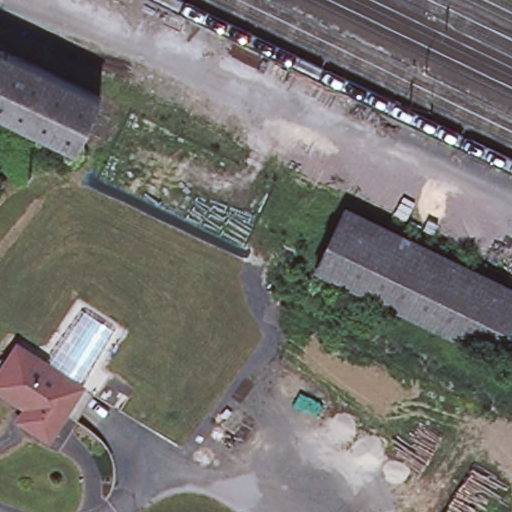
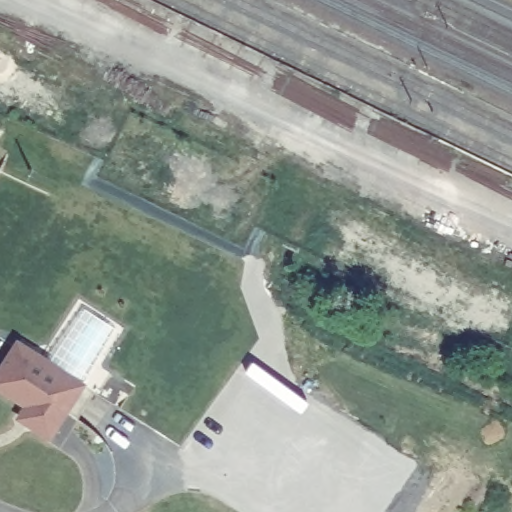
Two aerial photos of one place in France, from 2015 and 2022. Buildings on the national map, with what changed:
demolished [(79,151),(0,114),(0,53),(103,103),(79,151)]
demolished [(512,291),(512,319),(498,348),(318,263),(342,212),(512,291)]
unchanged [(0,389),(0,369),(16,344),(80,385),(92,393),(75,420),(63,411),(47,436),(28,423),(18,417),(25,405),(0,389)]

